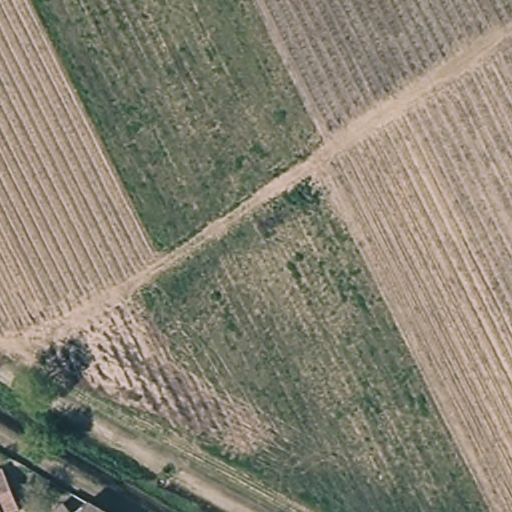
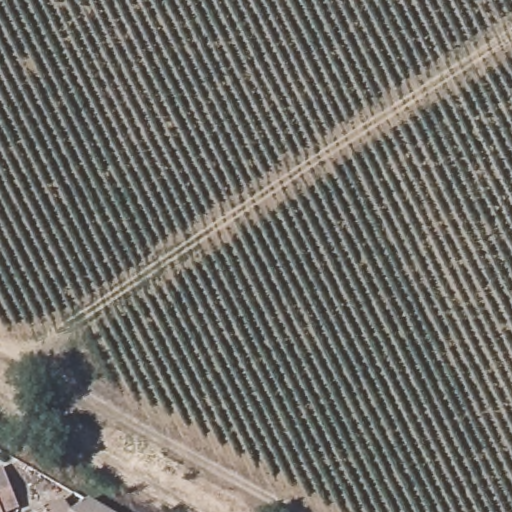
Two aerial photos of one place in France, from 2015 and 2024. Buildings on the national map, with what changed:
unchanged [(0,465),(17,506),(4,512),(0,512),(0,466),(0,465)]
unchanged [(75,510),(91,497),(116,512),(49,512),(66,499),(75,510)]

